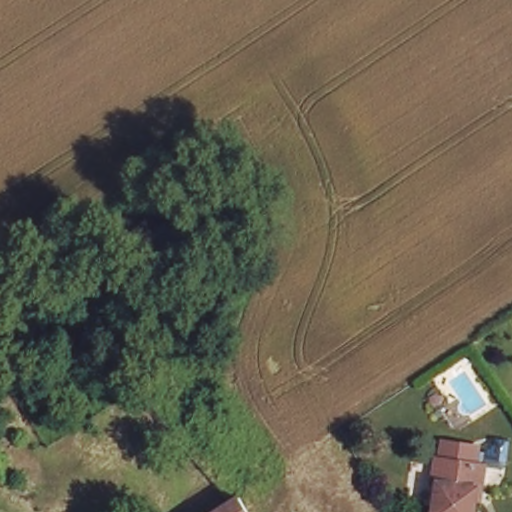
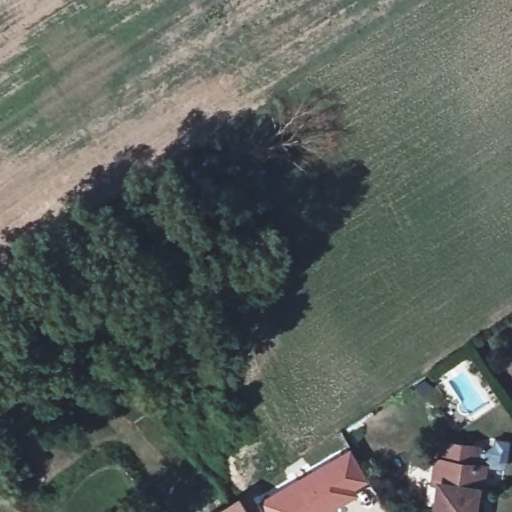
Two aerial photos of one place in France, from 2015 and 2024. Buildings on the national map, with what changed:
new [(348,445),(369,482),(356,490),(358,494),(329,511),(328,512),(265,512),(258,498),(289,478),(348,445)]
unchanged [(469,450),(466,467),(482,470),(479,492),(474,492),(471,512),(434,512),(438,488),(431,487),(435,463),(438,464),(440,446),(469,450)]
unchanged [(245,497),(247,501),(253,512),(218,512),(243,495),(245,497)]

